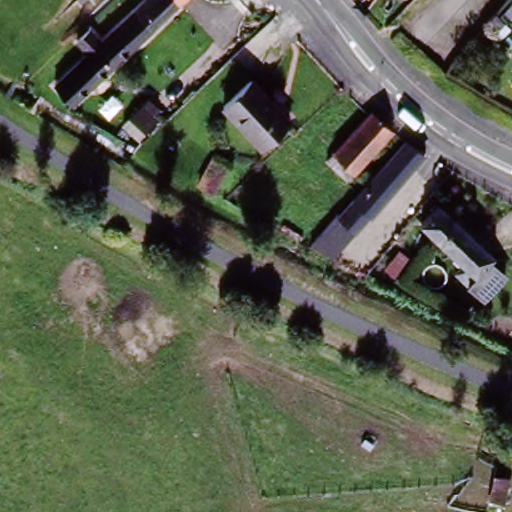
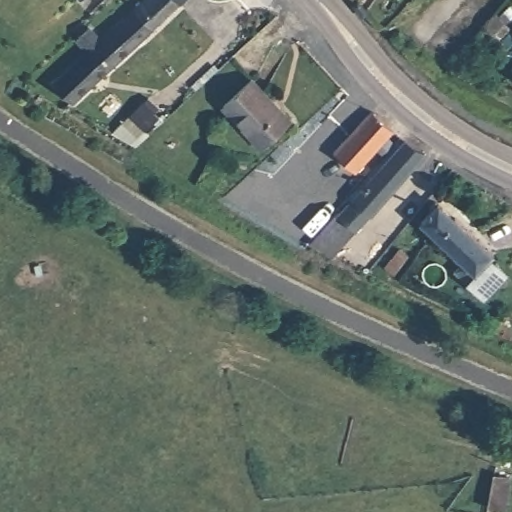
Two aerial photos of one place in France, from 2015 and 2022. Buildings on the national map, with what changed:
unchanged [(72,55),(73,55),(88,39),(96,47),(143,0),(184,0),(78,106),(59,87),(82,64),(72,55)]
unchanged [(495,4),(504,13),(490,28),(480,20),(495,4)]
unchanged [(224,107),(253,81),(290,123),(261,149),(224,107)]
unchanged [(327,162),(371,103),(392,128),(348,180),(327,162)]
unchanged [(427,156),(361,227),(345,213),(408,140),(427,156)]
unchanged [(190,183),(178,176),(192,153),(204,160),(190,183)]
unchanged [(335,256),(315,241),(341,211),(345,213),(361,227),(335,256)]
unchanged [(456,217),(510,266),(492,285),(440,236),(456,217)]

